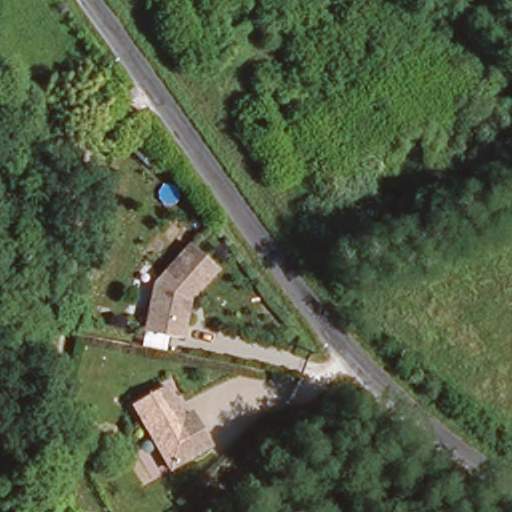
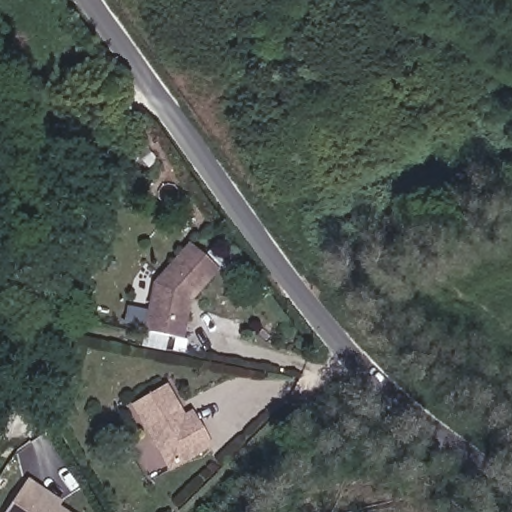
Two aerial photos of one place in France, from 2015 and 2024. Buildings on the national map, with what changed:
unchanged [(217,270),(186,303),(181,336),(167,335),(164,351),(139,346),(149,283),(187,244),(217,270)]
unchanged [(181,413),(187,409),(208,445),(166,470),(126,403),(164,383),(181,413)]
new [(62,501),(59,505),(68,512),(4,512),(26,478),(62,501)]

